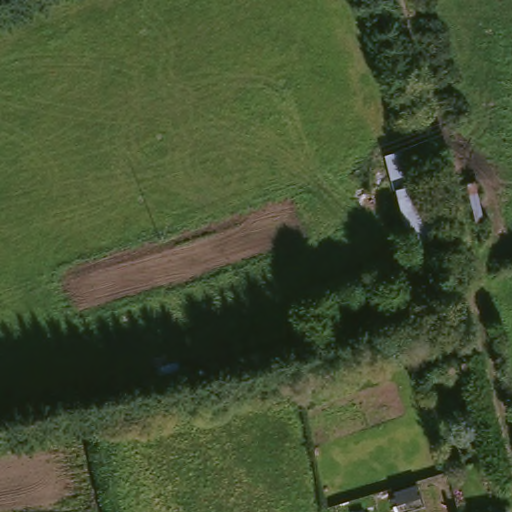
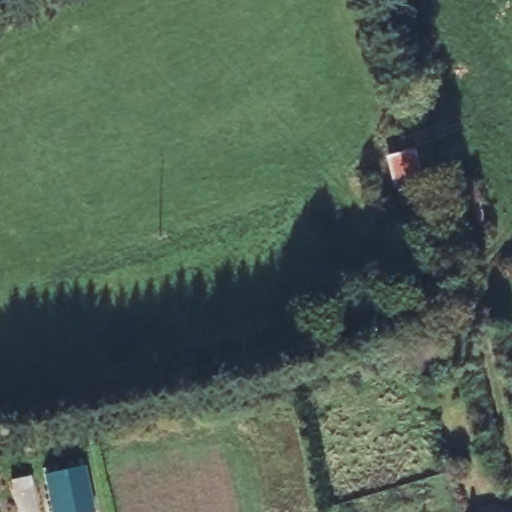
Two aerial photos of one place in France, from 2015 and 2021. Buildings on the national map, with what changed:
unchanged [(441,245),(409,255),(382,151),(414,145),(441,245)]
new [(45,475),(84,466),(94,512),(52,512),(45,475)]
unchanged [(500,507),(502,512),(479,512),(500,507)]

